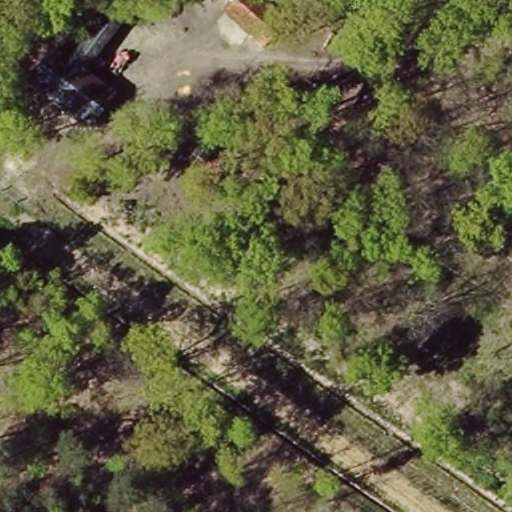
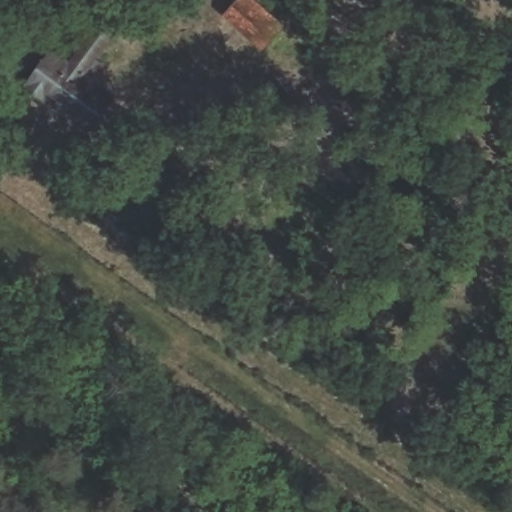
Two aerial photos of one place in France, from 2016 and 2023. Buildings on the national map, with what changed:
unchanged [(266,52),(255,42),(227,19),(243,0),(256,0),(276,17),(287,26),(266,52)]
unchanged [(113,102),(90,134),(27,91),(50,58),(70,72),(102,25),(116,34),(83,81),(113,102)]
unchanged [(205,144),(215,153),(204,167),(193,158),(205,144)]

